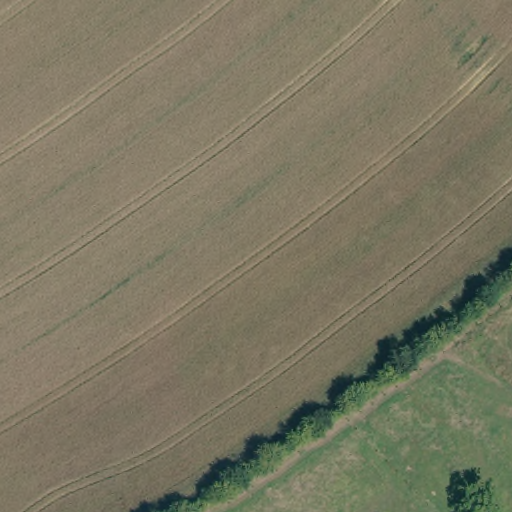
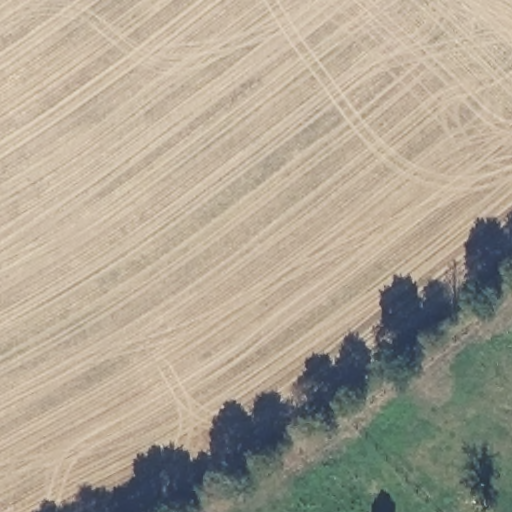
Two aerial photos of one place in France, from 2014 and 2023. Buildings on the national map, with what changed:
[]

